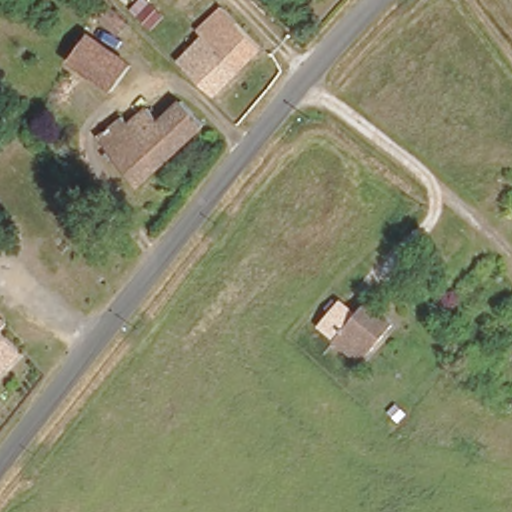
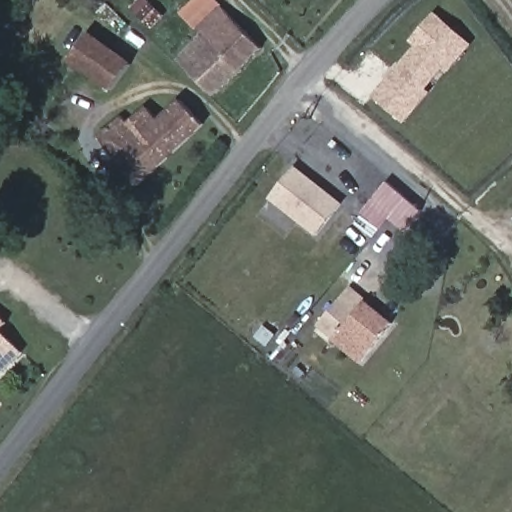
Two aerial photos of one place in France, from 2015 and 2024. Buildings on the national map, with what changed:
unchanged [(150,31),(135,16),(150,1),(165,16),(150,31)]
unchanged [(103,7),(124,26),(119,31),(98,12),(103,7)]
unchanged [(207,40),(201,35),(225,11),(265,50),(218,96),(184,62),(207,40)]
new [(415,47),(410,42),(433,15),(472,46),(405,124),(372,97),(415,47)]
unchanged [(91,34),(128,62),(108,87),(71,57),(91,34)]
unchanged [(127,127),(144,111),(157,125),(179,105),(200,127),(158,167),(127,127)]
unchanged [(127,127),(158,167),(137,187),(98,139),(120,118),(127,127)]
new [(341,203),(315,236),(269,200),(295,166),(341,203)]
new [(372,202),(386,185),(420,213),(406,231),(372,202)]
unchanged [(339,341),(320,325),(315,321),(339,294),(344,298),(354,307),(364,297),(392,320),(395,322),(374,347),(362,361),(359,357),(339,341)]
unchanged [(0,326),(0,319),(3,322),(0,326)]
unchanged [(0,368),(0,332),(17,350),(0,368)]

